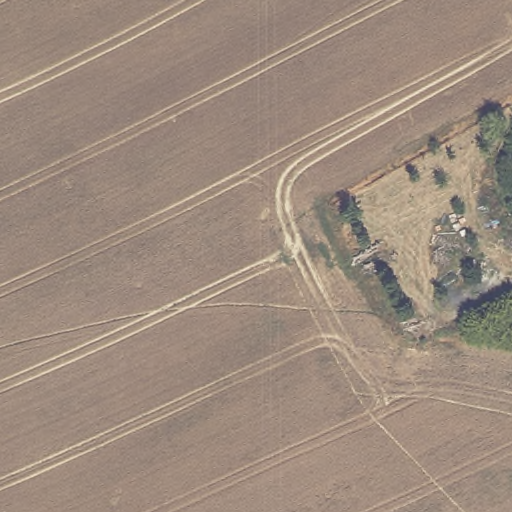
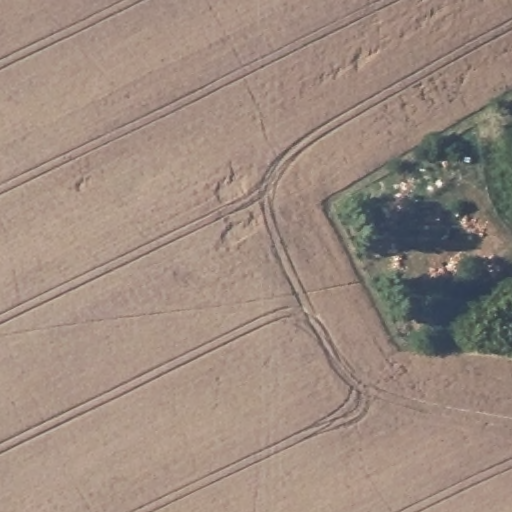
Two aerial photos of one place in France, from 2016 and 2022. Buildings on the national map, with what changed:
[]

